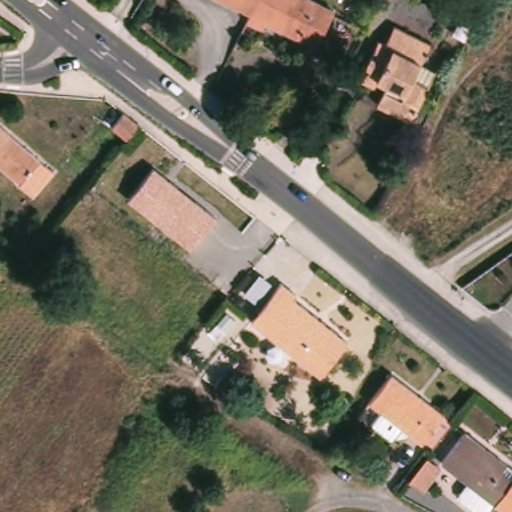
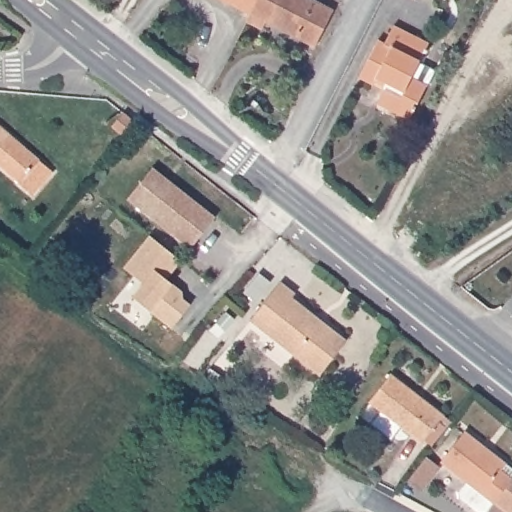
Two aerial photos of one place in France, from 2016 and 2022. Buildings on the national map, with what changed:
unchanged [(251,19),(214,0),(260,0),(251,19)]
unchanged [(260,0),(301,0),(333,16),(315,51),(267,27),(262,36),(246,28),(251,19),(260,0)]
unchanged [(426,90),(409,124),(377,108),(386,90),(376,85),(373,90),(360,83),(378,45),(385,48),(393,30),(430,49),(420,69),(433,75),(426,90)]
unchanged [(140,125),(130,140),(129,140),(115,130),(126,115),(140,125)]
unchanged [(52,179),(33,201),(19,189),(21,186),(0,168),(0,131),(52,179)]
unchanged [(190,250),(126,200),(151,168),(215,217),(190,250)]
new [(150,236),(180,260),(166,279),(182,291),(182,298),(190,305),(171,328),(132,297),(144,283),(124,268),(150,236)]
unchanged [(318,375),(250,320),(281,282),(295,294),(292,298),(346,341),(318,375)]
unchanged [(391,379),(442,420),(420,447),(370,406),(391,379)]
unchanged [(505,512),(438,462),(464,431),(505,464),(500,470),(512,480),(512,507),(508,512),(505,512)]
unchanged [(435,475),(425,488),(410,477),(421,463),(435,475)]

